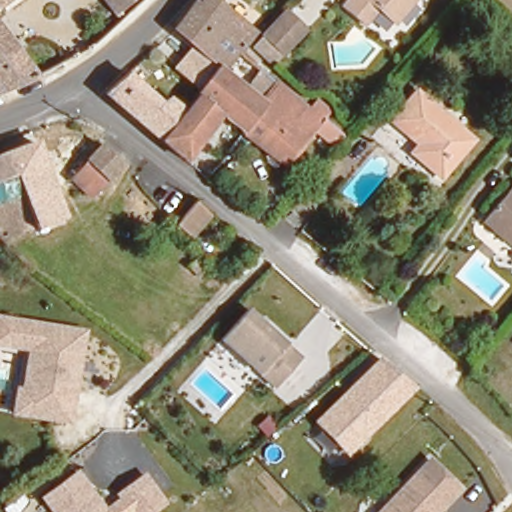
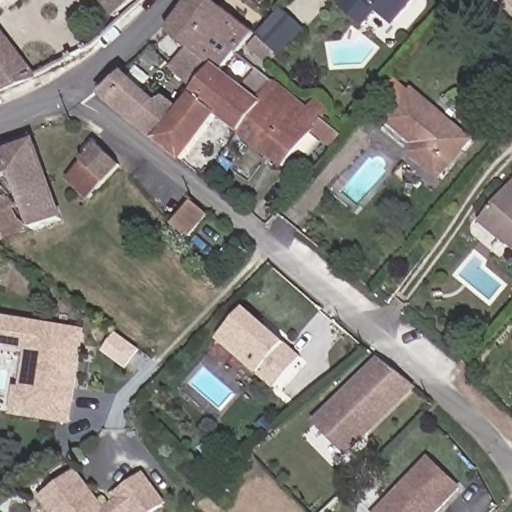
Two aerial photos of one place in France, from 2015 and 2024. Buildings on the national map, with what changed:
unchanged [(0,1),(0,0),(1,0),(0,1)]
unchanged [(121,21),(106,0),(155,0),(157,3),(127,27),(121,21)]
unchanged [(246,131),(242,137),(232,129),(235,124),(222,113),(187,159),(164,140),(199,93),(202,89),(180,68),(199,47),(175,28),(196,0),(218,0),(259,30),(245,50),(282,80),(246,131)]
unchanged [(400,18),(384,5),(370,21),(347,1),(348,0),(414,0),(400,18)]
unchanged [(304,26),(280,49),(260,29),(280,10),(285,5),(304,26)]
unchanged [(0,26),(37,74),(0,89),(0,26)]
unchanged [(164,140),(108,92),(130,71),(164,102),(169,96),(173,100),(187,84),(199,93),(164,140)]
unchanged [(282,80),(321,113),(323,110),(350,132),(337,146),(319,131),(290,164),(246,131),(282,80)]
unchanged [(470,134),(435,171),(411,149),(417,141),(390,113),(416,84),(470,134)]
unchanged [(0,227),(0,152),(10,149),(37,139),(65,214),(36,224),(34,218),(1,231),(0,231),(0,227)]
unchanged [(87,198),(66,176),(98,143),(120,165),(87,198)]
unchanged [(479,220),(489,209),(510,185),(512,182),(512,239),(510,237),(505,243),(479,220)]
unchanged [(190,233),(174,216),(191,197),(209,213),(190,233)]
unchanged [(286,343),(303,358),(275,391),(257,376),(219,342),(247,309),(286,343)]
unchanged [(12,417),(16,387),(24,387),(29,353),(0,348),(0,316),(89,331),(73,426),(12,417)]
unchanged [(353,418),(338,404),(377,362),(395,378),(353,418)]
unchanged [(413,393),(350,452),(320,421),(338,404),(353,418),(395,378),(413,393)]
unchanged [(379,512),(429,456),(465,491),(444,512),(379,512)]
unchanged [(80,472),(110,512),(53,512),(43,498),(80,472)]
unchanged [(129,512),(117,496),(146,475),(168,506),(159,512),(129,512)]

